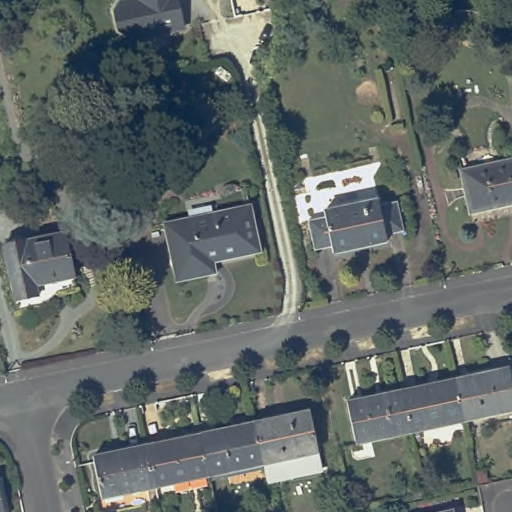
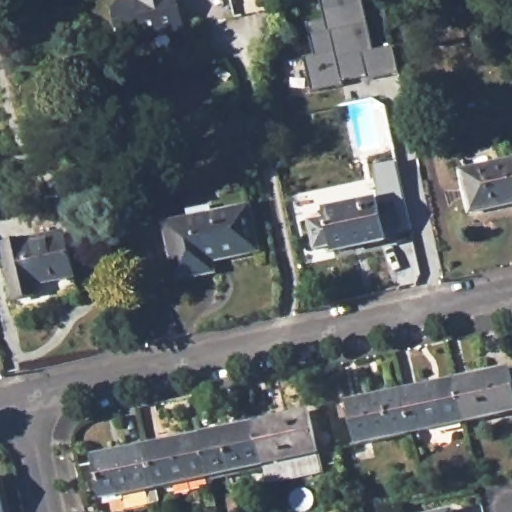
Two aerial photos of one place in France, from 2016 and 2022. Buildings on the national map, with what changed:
unchanged [(130,32),(124,28),(120,7),(124,2),(133,0),(180,0),(185,26),(170,29),(131,37),(130,32)]
new [(303,57),(314,54),(306,24),(325,20),(320,0),(360,0),(372,50),(391,46),(397,74),(366,80),(363,74),(340,79),(341,85),(310,91),(303,57)]
unchanged [(460,172),(512,159),(512,205),(470,216),(460,172)]
new [(397,162),(410,227),(402,229),(396,199),(378,203),(377,197),(375,167),(397,162)]
unchanged [(330,245),(313,249),(307,220),(323,216),(322,210),(377,197),(378,203),(396,199),(402,229),(385,233),(386,240),(332,252),(330,245)]
unchanged [(165,222),(249,205),(258,250),(203,262),(206,273),(177,279),(165,222)]
unchanged [(5,246),(65,233),(74,272),(36,280),(39,290),(16,295),(5,246)]
unchanged [(455,378),(509,367),(512,380),(512,409),(463,419),(455,378)]
unchanged [(401,390),(455,378),(463,419),(410,431),(401,390)]
unchanged [(355,443),(346,402),(401,390),(410,431),(355,443)]
unchanged [(256,422),(307,411),(316,452),(264,463),(256,422)]
unchanged [(202,435),(256,422),(264,463),(210,475),(202,435)]
unchanged [(147,447),(202,435),(210,475),(155,487),(147,447)]
unchanged [(102,498),(93,457),(147,445),(147,447),(155,487),(102,498)]
unchanged [(0,512),(0,492),(4,512),(0,512)]
unchanged [(453,512),(441,512),(452,510),(453,512)]

